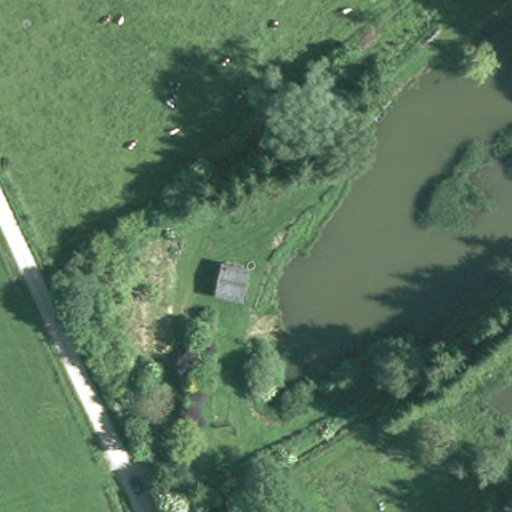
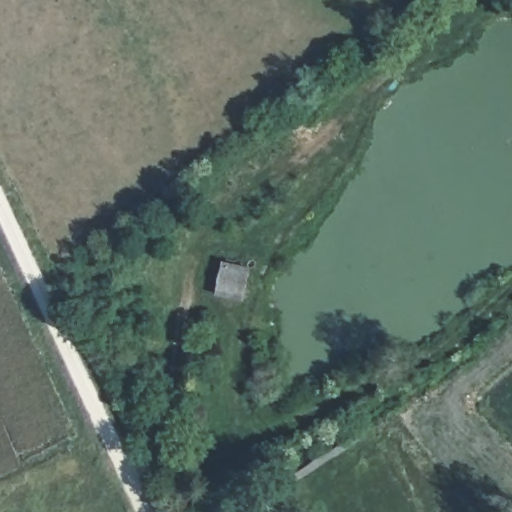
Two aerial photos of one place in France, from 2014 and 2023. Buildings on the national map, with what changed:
unchanged [(211,295),(220,255),(254,258),(247,298),(211,295)]

